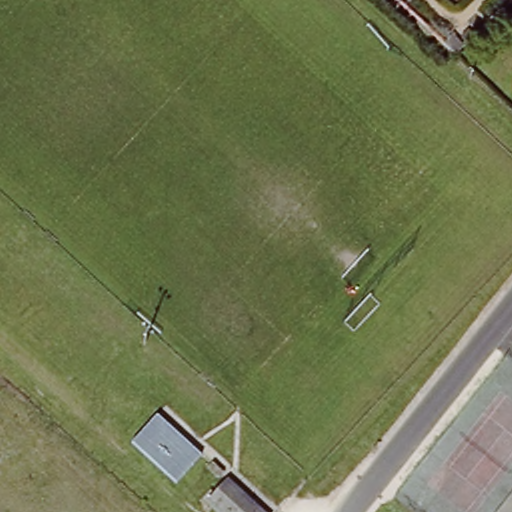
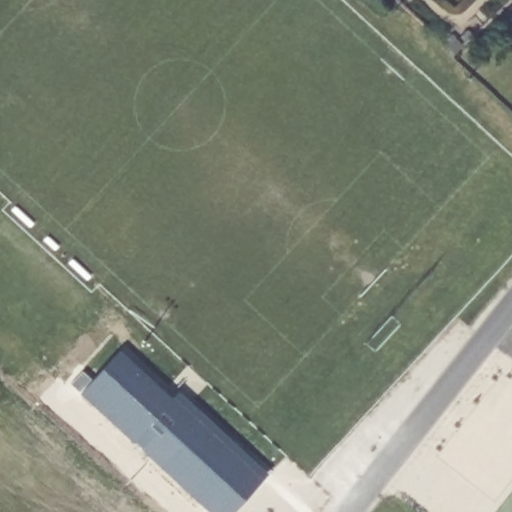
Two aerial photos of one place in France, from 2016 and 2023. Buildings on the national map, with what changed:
new [(452,36),(461,47),(453,54),(444,44),(452,36)]
new [(173,397),(181,390),(266,473),(232,512),(209,512),(80,393),(121,350),(173,397)]
demolished [(132,441),(157,413),(201,453),(175,480),(132,441)]
demolished [(217,512),(210,505),(232,482),(264,512),(217,512)]

